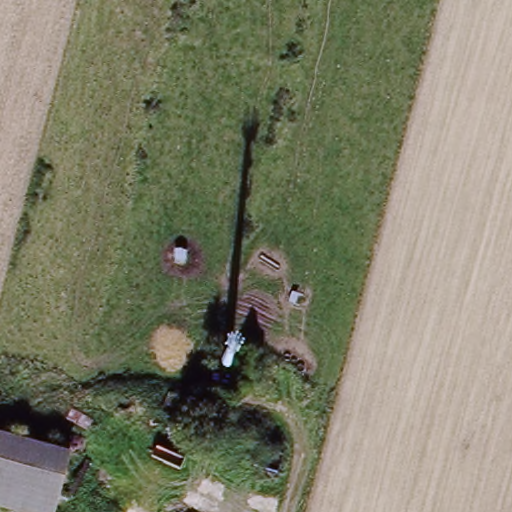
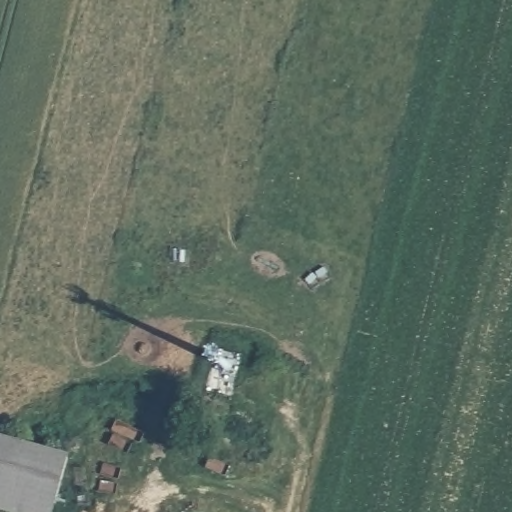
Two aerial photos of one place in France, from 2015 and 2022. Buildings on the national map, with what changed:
unchanged [(68,455),(53,512),(15,512),(0,508),(0,437),(68,455)]

